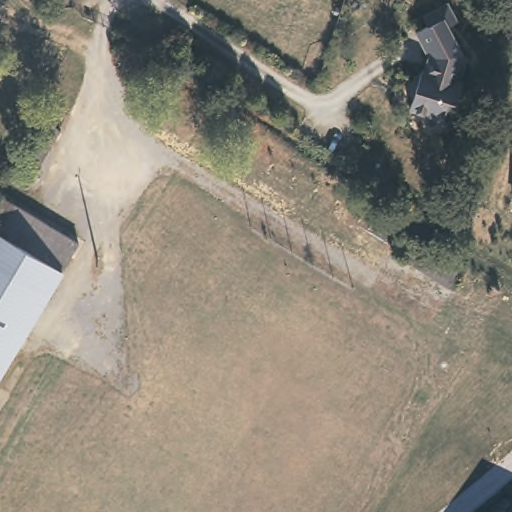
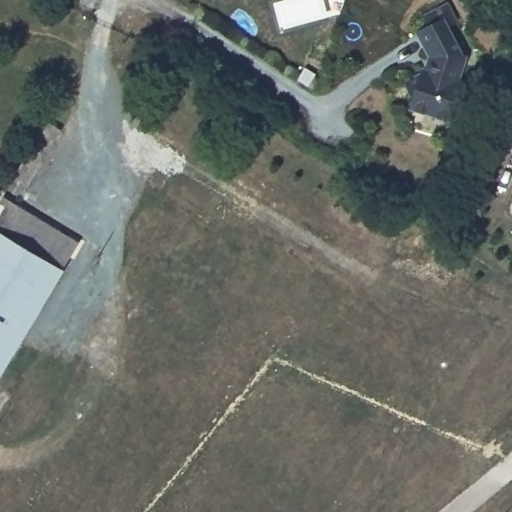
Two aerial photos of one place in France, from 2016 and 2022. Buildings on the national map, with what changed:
unchanged [(452,21),(443,26),(457,54),(462,56),(458,66),(454,81),(461,83),(448,120),(407,107),(410,97),(402,83),(418,75),(421,68),(422,68),(427,55),(424,53),(413,30),(423,24),(420,16),(442,4),(452,21)]
unchanged [(65,271),(0,380),(0,205),(5,198),(80,241),(65,271)]
unchanged [(413,236),(466,264),(452,288),(398,254),(413,236)]

